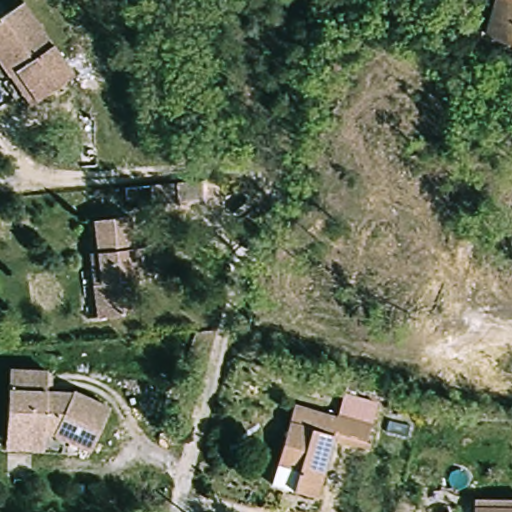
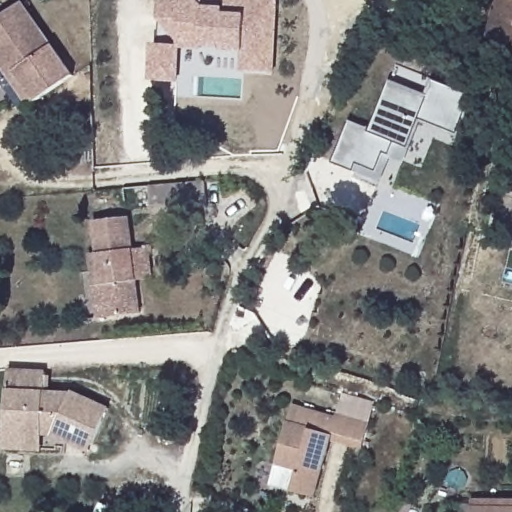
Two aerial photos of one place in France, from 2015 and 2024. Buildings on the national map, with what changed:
unchanged [(0,14),(23,0),(24,0),(71,75),(32,99),(24,104),(7,77),(0,67),(0,14)]
new [(244,52),(222,50),(222,46),(203,45),(202,49),(182,48),(180,82),(150,81),(153,44),(180,46),(179,42),(157,17),(160,0),(279,0),(275,72),(242,70),(244,52)]
unchanged [(487,34),(497,0),(512,0),(512,42),(487,34)]
new [(458,134),(420,120),(405,164),(391,160),(383,181),(335,163),(350,121),(371,128),(390,81),(427,94),(432,80),(473,95),(458,134)]
unchanged [(191,202),(149,203),(150,181),(189,180),(191,202)]
new [(499,220),(505,192),(512,194),(512,223),(499,220)]
unchanged [(85,253),(96,252),(92,218),(132,214),(133,243),(154,240),(155,250),(165,250),(166,267),(154,268),(156,280),(138,282),(143,313),(95,319),(85,253)]
unchanged [(0,433),(5,371),(43,374),(42,392),(56,393),(70,397),(72,391),(108,407),(92,440),(86,452),(53,436),(57,427),(52,418),(41,419),(39,434),(39,453),(0,451),(0,433)]
unchanged [(295,492),(300,471),(277,465),(292,408),(335,419),(337,411),(369,420),(362,447),(330,441),(315,497),(295,492)]
unchanged [(512,498),(512,512),(470,512),(470,499),(512,498)]

